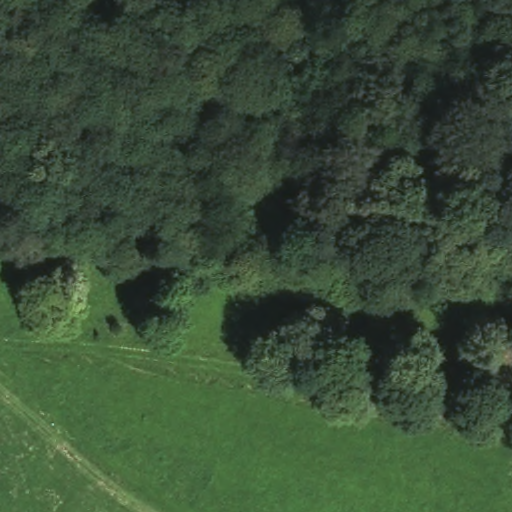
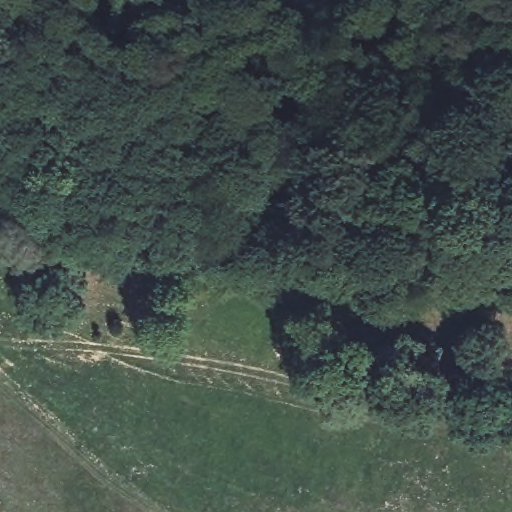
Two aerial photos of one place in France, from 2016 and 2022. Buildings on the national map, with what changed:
[]

